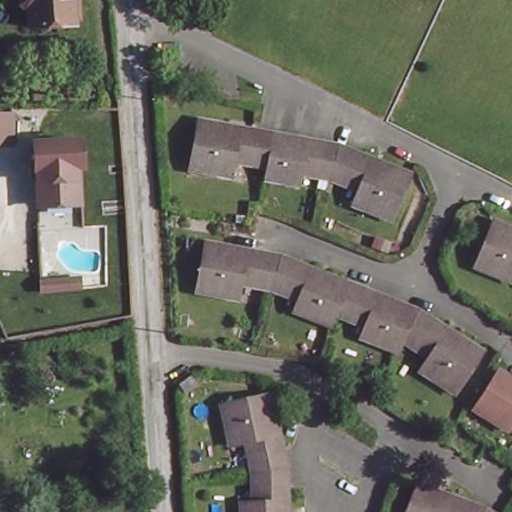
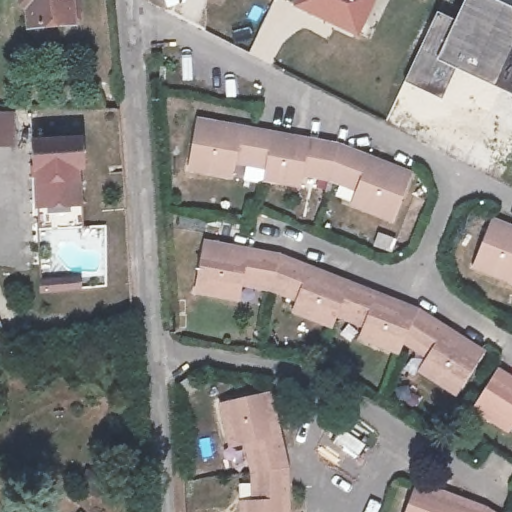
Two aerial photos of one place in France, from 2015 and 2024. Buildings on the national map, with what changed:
unchanged [(78,1),(79,20),(74,20),(74,25),(32,28),(30,9),(21,4),(21,0),(72,0),(72,1),(78,1)]
new [(300,0),(371,0),(358,28),(300,0)]
new [(454,19),(463,0),(496,0),(512,8),(512,98),(456,70),(441,100),(403,81),(436,11),(454,19)]
new [(512,0),(512,8),(496,0),(512,0)]
new [(512,105),(512,109),(511,108),(512,105)]
unchanged [(21,108),(22,150),(0,151),(0,108),(21,108)]
unchanged [(338,142),(339,139),(413,165),(397,207),(358,192),(365,170),(357,166),(354,172),(335,163),(304,157),(300,178),(266,171),(268,158),(252,154),(253,148),(237,145),(232,168),(190,159),(199,110),(338,142)]
unchanged [(84,155),(80,155),(84,186),(80,190),(47,193),(43,189),(38,131),(82,128),(84,155)]
unchanged [(511,274),(475,258),(491,215),(512,223),(512,272),(511,274)]
unchanged [(282,253),(426,309),(486,350),(463,387),(425,364),(439,344),(429,337),(424,341),(411,334),(405,346),(365,329),(372,312),(360,307),(358,313),(340,305),(337,314),(297,299),(302,284),(290,279),(289,286),(257,279),(257,274),(243,271),(238,292),(197,284),(205,239),(282,253)]
unchanged [(475,408),(499,369),(512,377),(512,430),(475,408)]
unchanged [(192,387),(181,393),(177,388),(187,380),(192,387)]
unchanged [(250,499),(266,499),(265,488),(261,488),(256,452),(261,451),(259,440),(235,443),(227,403),(270,392),(291,473),(292,512),(250,512),(250,499)]
unchanged [(417,479),(475,502),(493,512),(404,512),(417,479)]

